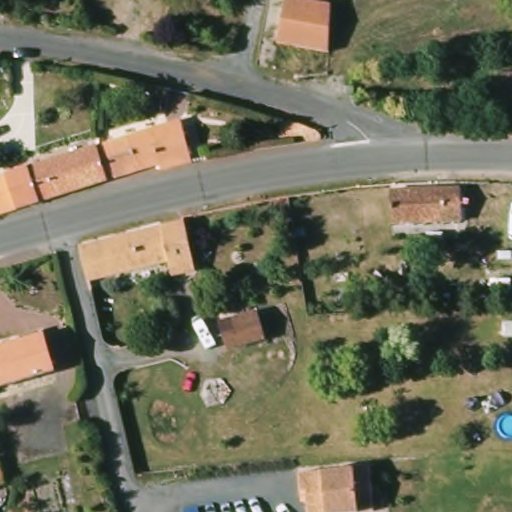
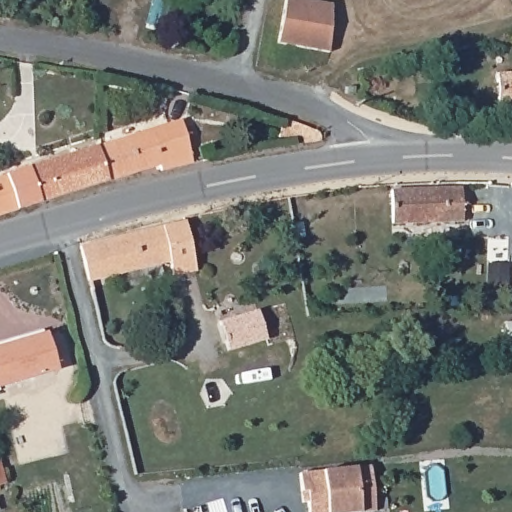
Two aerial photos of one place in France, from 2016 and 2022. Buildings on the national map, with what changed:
unchanged [(329,50),(277,40),(284,0),(317,0),(332,3),(329,50)]
unchanged [(500,59),(512,59),(512,72),(501,72),(500,59)]
unchanged [(508,114),(508,105),(501,105),(501,72),(512,72),(512,114),(508,114)]
unchanged [(302,136),(279,139),(279,119),(317,131),(319,134),(320,138),(320,140),(302,143),(302,136)]
unchanged [(98,145),(152,129),(155,135),(184,129),(192,164),(140,174),(139,171),(107,180),(98,145)]
unchanged [(107,180),(0,213),(0,174),(98,145),(107,180)]
unchanged [(436,222),(393,223),(392,190),(463,188),(465,220),(457,220),(447,221),(436,222)]
unchanged [(174,281),(172,273),(170,265),(89,287),(80,252),(185,224),(197,266),(200,274),(174,281)]
unchanged [(267,338),(239,342),(225,342),(224,335),(225,329),(221,319),(234,314),(239,328),(262,321),(267,338)]
unchanged [(57,374),(0,388),(0,349),(48,336),(57,374)]
unchanged [(372,461),(379,512),(309,512),(303,469),(372,461)]
unchanged [(0,484),(0,473),(4,483),(0,484)]

